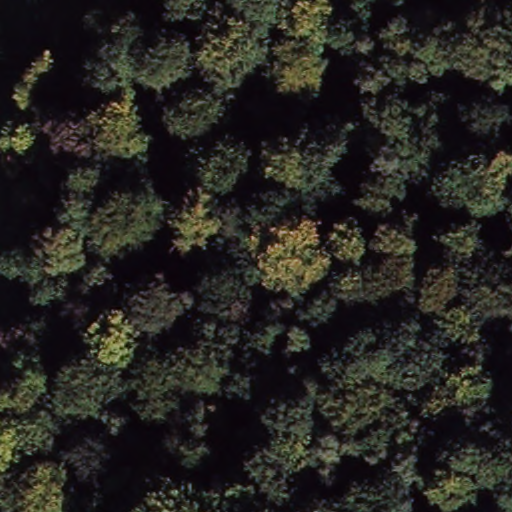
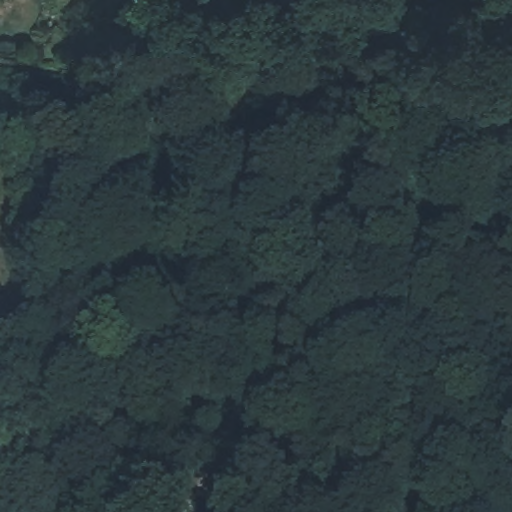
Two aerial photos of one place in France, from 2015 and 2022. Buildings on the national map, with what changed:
[]

